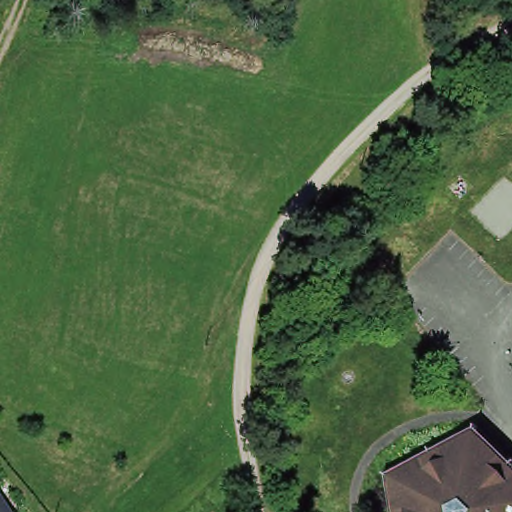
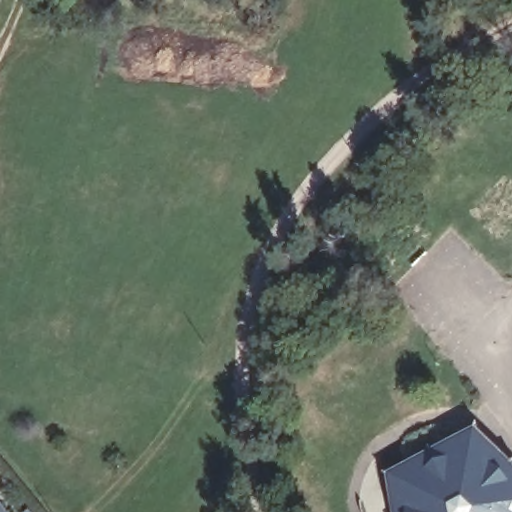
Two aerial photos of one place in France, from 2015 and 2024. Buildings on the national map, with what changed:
unchanged [(394,512),(389,478),(477,430),(512,462),(512,512),(394,512)]
unchanged [(0,512),(0,501),(7,512),(0,512)]

